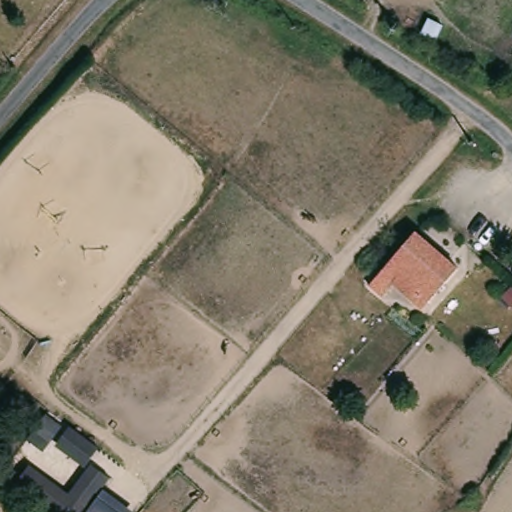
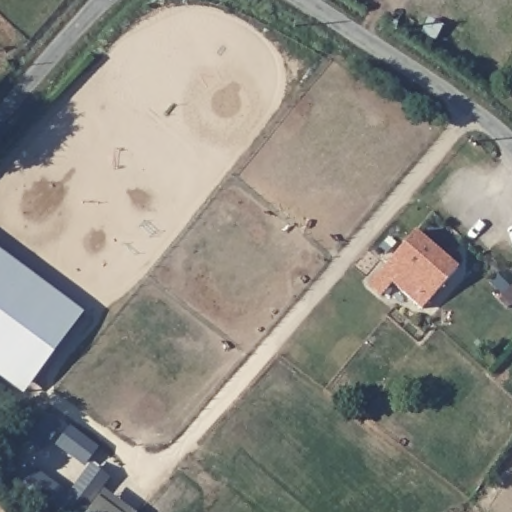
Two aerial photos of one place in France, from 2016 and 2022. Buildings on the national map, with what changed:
unchanged [(423,308),(393,281),(390,285),(378,274),(387,265),(416,230),(459,267),(423,308)]
new [(23,393),(0,376),(0,252),(83,313),(23,393)]
new [(46,415),(61,427),(44,451),(28,439),(46,415)]
new [(69,426),(98,448),(85,467),(56,445),(69,426)]
unchanged [(98,458),(117,471),(109,483),(145,510),(144,512),(59,512),(22,487),(39,460),(75,488),(98,458)]

